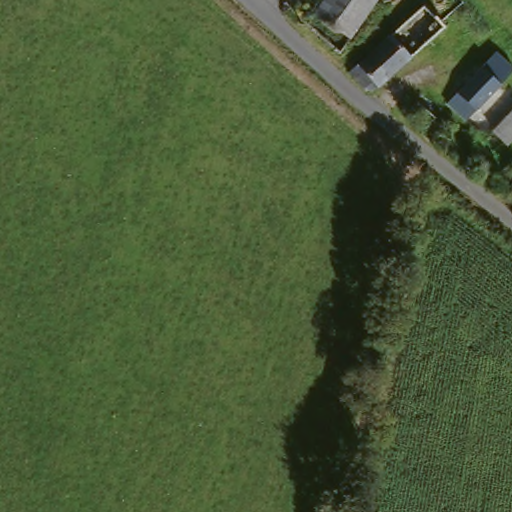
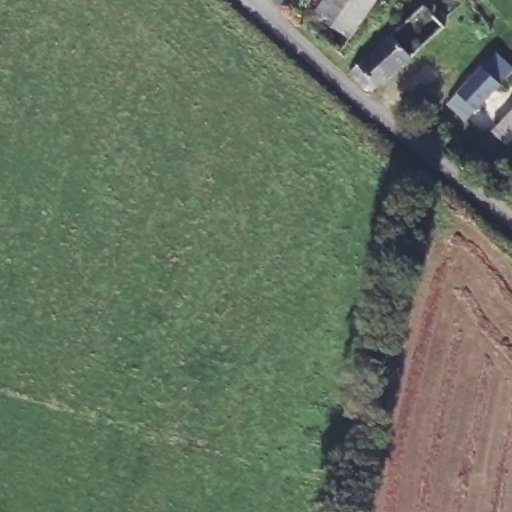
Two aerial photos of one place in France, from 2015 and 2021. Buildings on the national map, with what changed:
unchanged [(320,0),(377,0),(364,16),(344,36),(312,13),(320,0)]
unchanged [(444,23),(404,56),(388,39),(428,2),(442,18),(444,23)]
unchanged [(371,87),(359,87),(349,73),(375,50),(388,39),(404,56),(371,87)]
unchanged [(506,81),(469,114),(451,95),(489,64),(506,81)]
unchanged [(430,125),(411,109),(426,91),(444,107),(430,125)]
unchanged [(489,134),(512,112),(512,152),(509,155),(489,134)]

